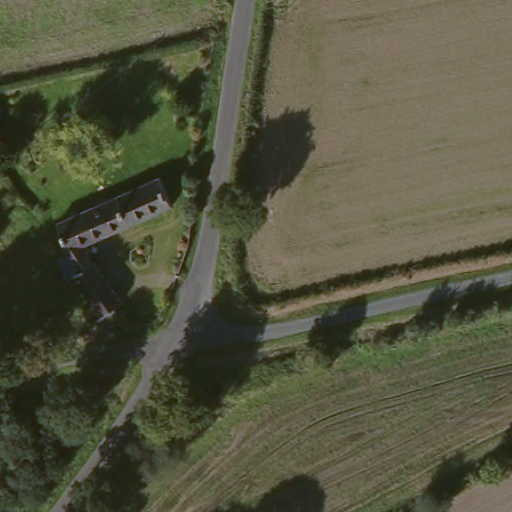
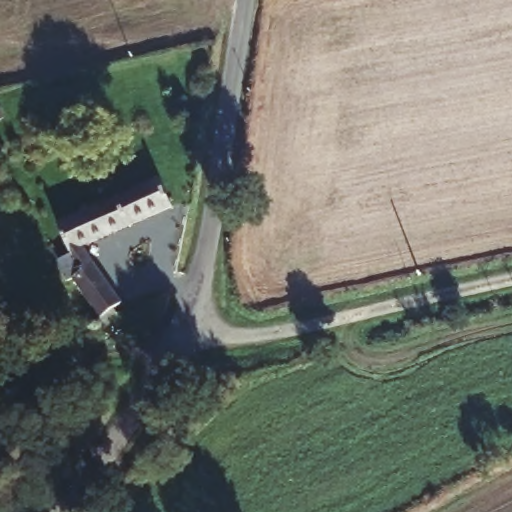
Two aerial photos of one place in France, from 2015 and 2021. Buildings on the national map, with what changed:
unchanged [(97,319),(102,314),(66,268),(71,262),(57,215),(154,181),(165,213),(84,241),(87,256),(122,295),(119,298),(128,312),(105,330),(97,319)]

